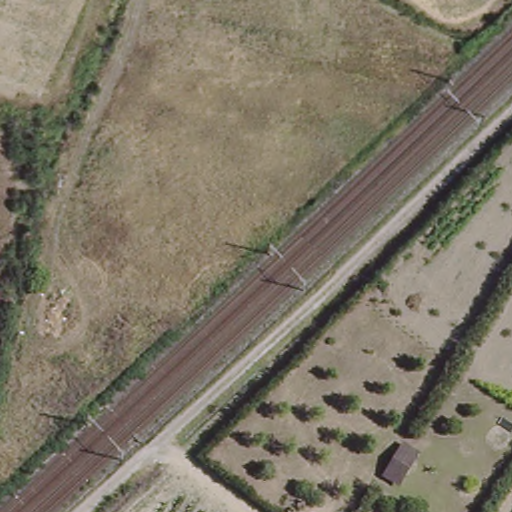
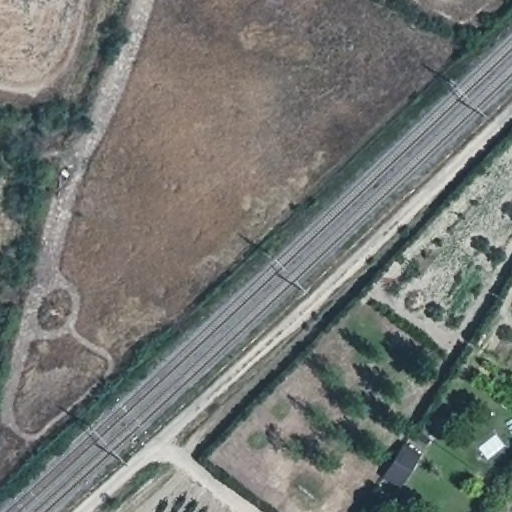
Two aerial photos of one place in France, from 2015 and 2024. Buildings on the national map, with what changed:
unchanged [(403,443),(418,452),(400,488),(384,480),(403,443)]

